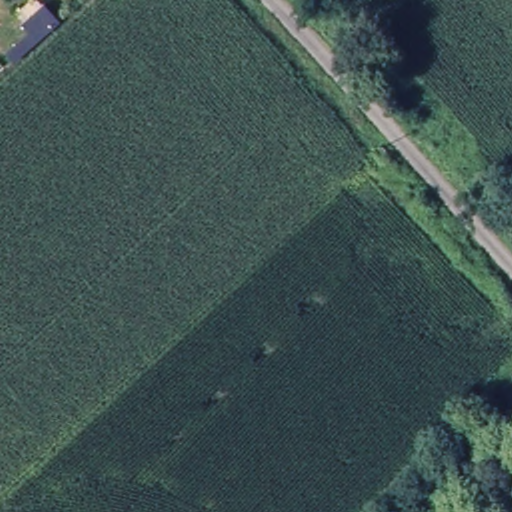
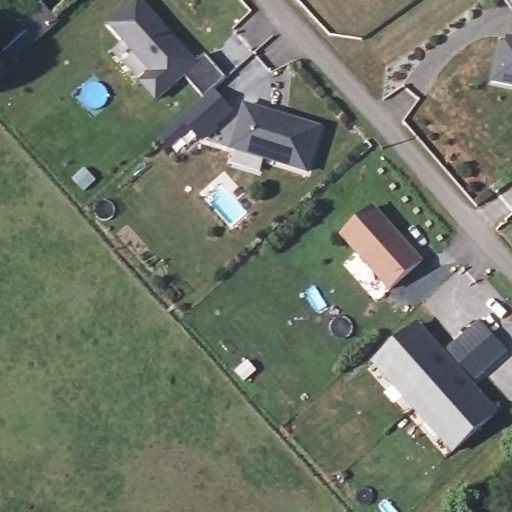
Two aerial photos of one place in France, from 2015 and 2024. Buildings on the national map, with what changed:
new [(509,0),(512,0),(512,4),(509,0)]
new [(200,101),(179,78),(152,102),(137,85),(147,75),(105,27),(134,2),(156,26),(160,31),(191,65),(201,57),(222,81),(208,93),(227,113),(208,130),(195,142),(187,132),(166,152),(155,141),(177,121),(190,110),(200,101)]
new [(11,56),(22,45),(32,36),(24,28),(42,10),(56,23),(28,51),(17,61),(11,56)]
new [(495,80),(502,42),(510,43),(511,36),(512,36),(512,83),(495,80)]
new [(287,115),(322,126),(309,170),(234,147),(247,103),(263,108),(287,115)]
new [(423,264),(393,292),(345,238),(376,211),(423,264)]
new [(454,343),(477,323),(491,338),(505,353),(482,374),(475,380),(467,387),(492,415),(455,449),(376,362),(414,328),(440,356),(447,350),(454,343)]

